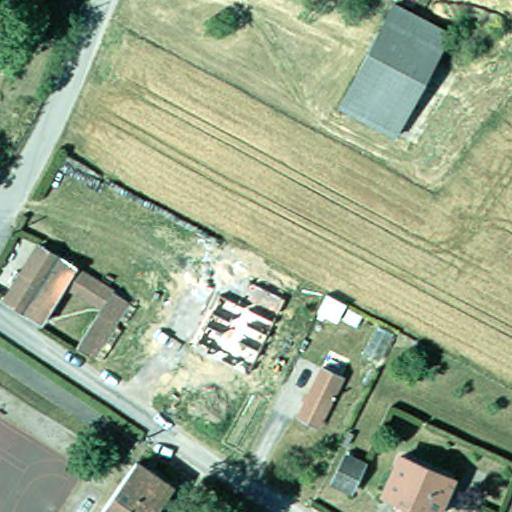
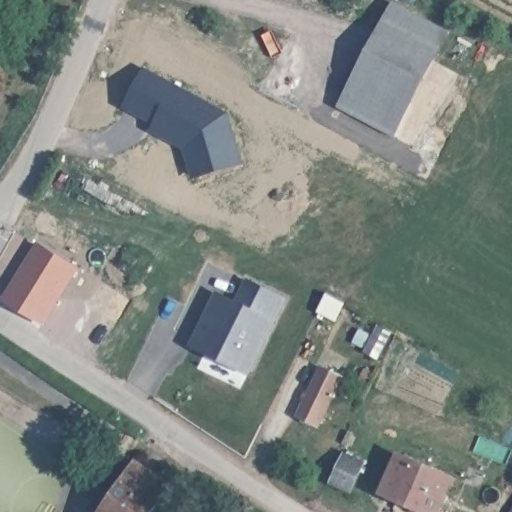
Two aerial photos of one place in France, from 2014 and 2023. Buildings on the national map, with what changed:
unchanged [(431,58),(390,135),(337,107),(372,39),(392,2),(446,30),(431,58)]
new [(147,71),(227,114),(242,162),(197,175),(191,159),(197,148),(189,144),(187,146),(156,129),(159,122),(129,106),(147,71)]
unchanged [(53,312),(48,310),(40,323),(7,302),(17,282),(10,279),(17,266),(24,270),(36,246),(126,297),(92,357),(77,347),(101,307),(63,285),(56,296),(61,299),(53,312)]
new [(287,297),(251,375),(191,347),(217,291),(236,299),(246,278),(287,297)]
new [(327,297),(347,307),(337,324),(318,315),(327,297)]
new [(395,338),(381,364),(363,356),(377,330),(395,338)]
unchanged [(315,421),(297,411),(323,366),(339,375),(315,421)]
unchanged [(129,466),(137,455),(172,482),(150,512),(95,512),(129,466)]
unchanged [(347,489),(332,481),(346,455),(361,463),(347,489)]
unchanged [(382,493),(399,455),(448,477),(430,512),(426,512),(382,493)]

